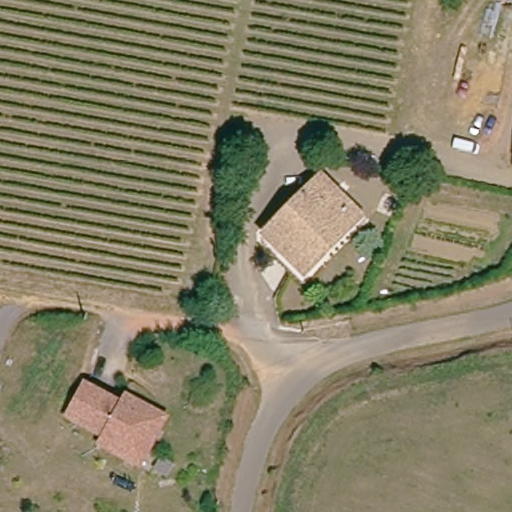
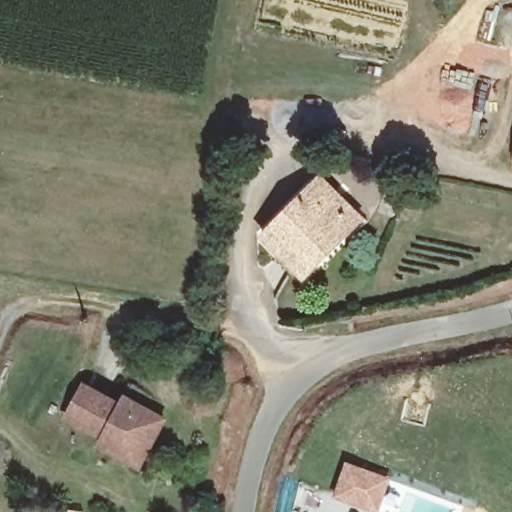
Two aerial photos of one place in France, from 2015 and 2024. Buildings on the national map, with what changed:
unchanged [(328,256),(311,273),(273,235),(320,182),(356,215),(362,221),(328,256)]
unchanged [(129,458),(102,445),(105,436),(69,418),(85,385),(122,404),(126,395),(140,402),(166,416),(151,447),(143,465),(129,458)]
new [(390,478),(378,512),(373,512),(332,497),(345,461),(390,478)]

